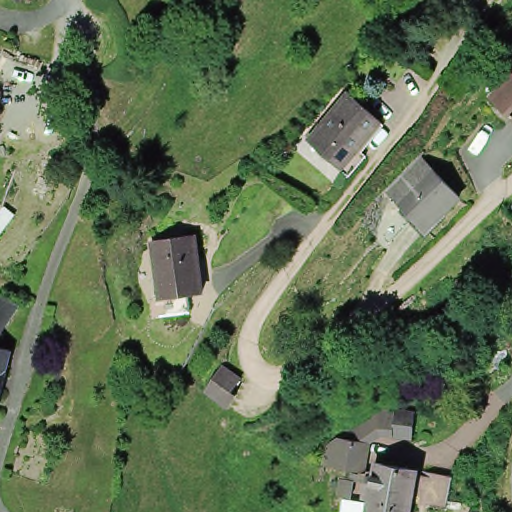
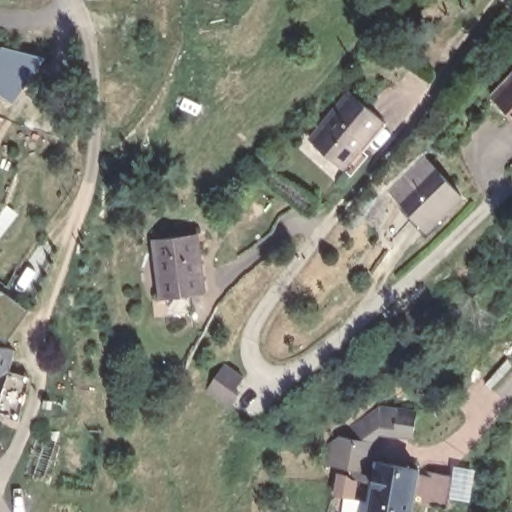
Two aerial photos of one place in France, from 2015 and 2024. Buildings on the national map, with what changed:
new [(41,57),(10,102),(0,96),(0,46),(41,57)]
unchanged [(512,78),(512,114),(494,99),(512,78)]
unchanged [(354,162),(352,163),(320,135),(360,91),(393,118),(398,122),(360,167),(354,162)]
unchanged [(400,206),(388,196),(422,161),(432,171),(462,200),(428,234),(400,206)]
unchanged [(159,284),(168,283),(163,237),(161,227),(203,222),(210,277),(205,278),(196,280),(198,297),(171,301),(161,302),(159,284)]
unchanged [(0,342),(0,300),(7,290),(10,292),(29,303),(8,333),(2,342),(0,342)]
unchanged [(20,351),(15,371),(4,409),(0,408),(0,346),(20,351)]
unchanged [(238,397),(229,408),(227,411),(202,395),(204,392),(221,367),(241,380),(232,392),(238,397)]
unchanged [(44,415),(40,407),(49,402),(54,410),(44,415)]
unchanged [(345,494),(345,493),(347,484),(350,467),(351,462),(328,457),(331,441),(379,407),(397,408),(419,410),(416,435),(395,433),(383,432),(376,442),(373,456),(371,456),(369,466),(364,465),(363,470),(357,497),(345,494)]
unchanged [(417,512),(372,512),(376,493),(370,492),(373,480),(378,481),(382,460),(425,468),(423,474),(418,502),(417,512)]
unchanged [(452,510),(418,502),(423,474),(434,477),(436,471),(458,476),(452,510)]

